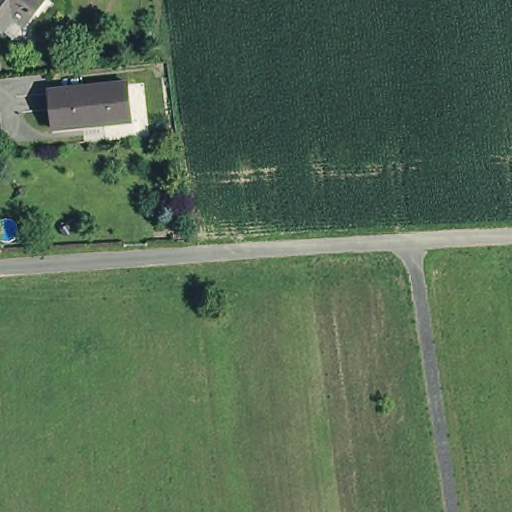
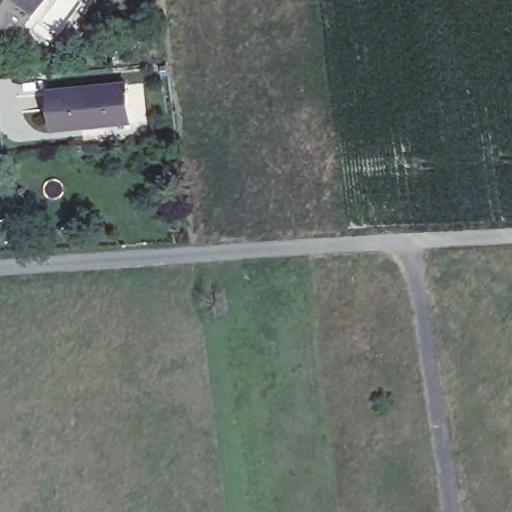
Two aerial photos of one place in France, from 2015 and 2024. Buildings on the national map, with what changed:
unchanged [(44,0),(17,36),(0,24),(0,0),(44,0)]
unchanged [(131,84),(135,121),(132,121),(132,119),(108,122),(109,125),(55,130),(51,92),(131,84)]

